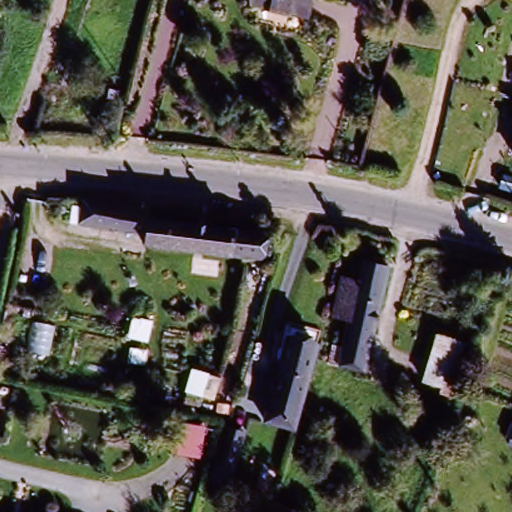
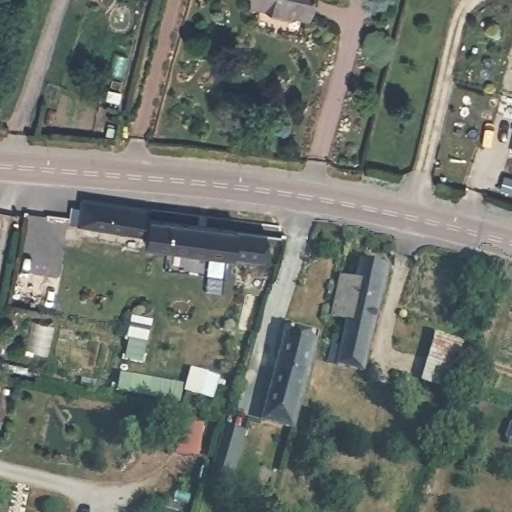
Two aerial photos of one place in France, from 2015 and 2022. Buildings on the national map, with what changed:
unchanged [(304,0),(301,13),(250,0),(304,0)]
unchanged [(144,245),(146,235),(70,224),(72,208),(82,209),(83,202),(148,212),(147,220),(260,234),(265,235),(262,259),(257,259),(144,245)]
unchanged [(389,269),(364,374),(329,365),(333,347),(342,349),(349,321),(332,317),(342,279),(357,284),(363,263),(389,269)]
unchanged [(448,397),(441,395),(442,389),(423,383),(437,338),(463,347),(448,397)]
unchanged [(260,422),(284,339),(311,348),(288,430),(260,422)]
unchanged [(230,480),(215,476),(229,429),(244,433),(230,480)]
unchanged [(287,495),(299,498),(296,512),(284,509),(287,495)]

